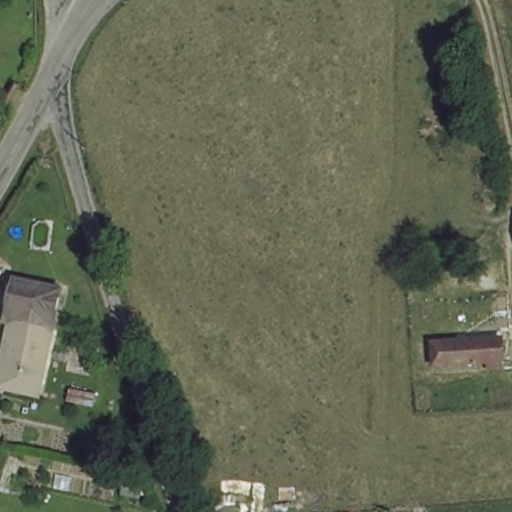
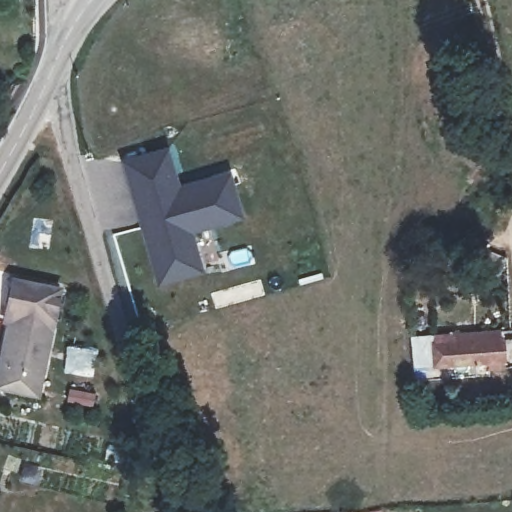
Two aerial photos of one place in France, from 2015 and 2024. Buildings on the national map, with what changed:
new [(243,218),(192,232),(204,272),(158,286),(120,159),(166,145),(181,184),(230,169),(243,218)]
unchanged [(6,381),(14,351),(6,349),(14,318),(8,316),(14,277),(64,287),(44,391),(6,381)]
unchanged [(490,355),(437,358),(435,332),(506,328),(508,363),(491,365),(490,355)]

